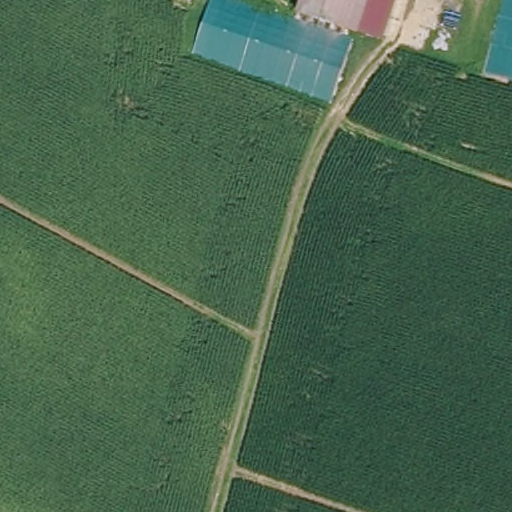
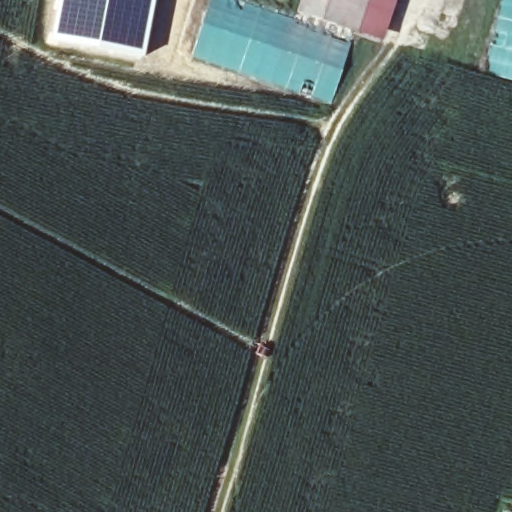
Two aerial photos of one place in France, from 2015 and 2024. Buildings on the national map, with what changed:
new [(59,0),(154,0),(143,58),(51,41),(59,0)]
unchanged [(298,19),(304,0),(353,0),(342,32),(331,29),(298,19)]
new [(397,0),(384,40),(344,29),(353,0),(397,0)]

